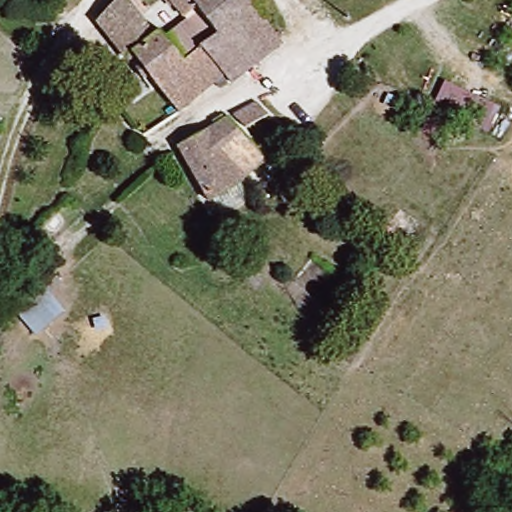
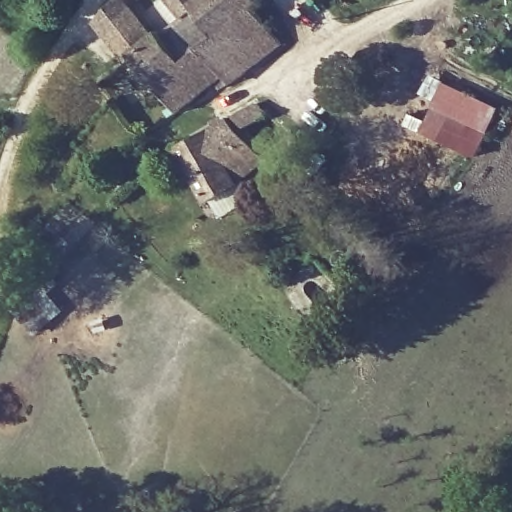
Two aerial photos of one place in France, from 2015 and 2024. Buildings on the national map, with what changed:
unchanged [(122,63),(94,23),(120,0),(125,0),(152,39),(130,56),(122,63)]
unchanged [(187,10),(179,18),(167,0),(250,0),(253,4),(246,11),(268,43),(270,45),(225,81),(220,75),(176,109),(155,85),(181,66),(177,63),(210,38),(187,10)]
unchanged [(181,66),(155,85),(136,64),(130,56),(152,39),(158,34),(177,63),(181,66)]
new [(477,158),(424,131),(435,106),(447,84),(501,109),(491,133),(477,158)]
unchanged [(258,118),(236,131),(226,116),(247,103),(258,118)]
unchanged [(220,121),(251,168),(205,196),(176,150),(220,121)]
unchanged [(260,229),(281,245),(272,259),(250,243),(260,229)]

